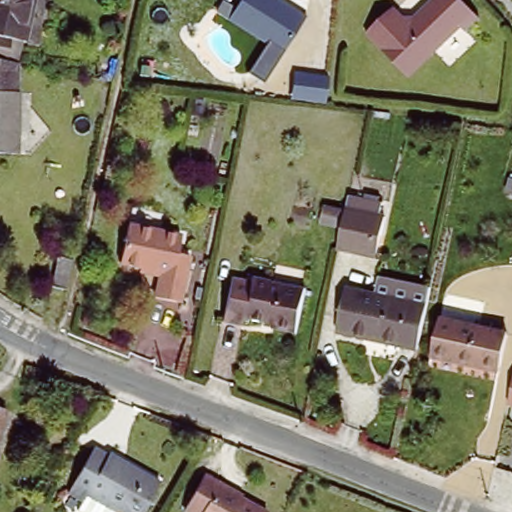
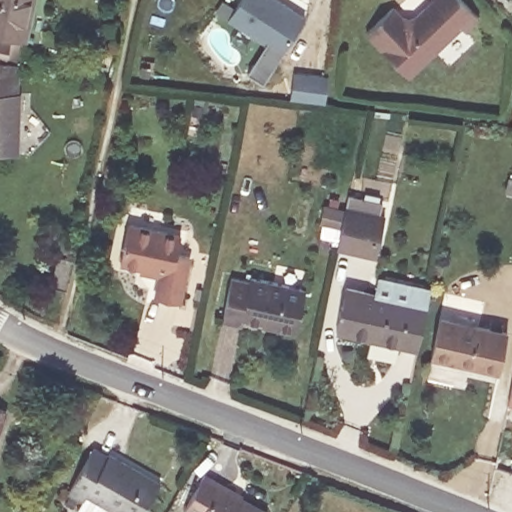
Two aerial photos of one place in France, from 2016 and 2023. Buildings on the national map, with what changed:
unchanged [(27,0),(20,36),(11,34),(5,60),(0,59),(0,0),(27,0)]
unchanged [(263,77),(249,69),(265,41),(229,12),(237,0),(289,0),(307,12),(263,77)]
unchanged [(430,9),(439,0),(465,0),(480,16),(466,29),(462,25),(409,76),(368,32),(395,7),(405,17),(414,17),(427,5),(430,9)]
unchanged [(9,65),(9,92),(12,92),(10,154),(0,153),(0,64),(9,65)]
unchanged [(512,204),(500,202),(503,185),(512,186),(512,204)]
unchanged [(364,254),(336,247),(345,206),(387,215),(382,236),(379,257),(364,254)]
unchanged [(181,235),(177,256),(192,258),(182,304),(150,297),(155,275),(115,267),(124,224),(181,235)]
unchanged [(70,265),(65,295),(42,291),(48,261),(70,265)]
unchanged [(431,287),(419,350),(336,333),(345,286),(375,292),(379,277),(431,287)]
unchanged [(309,290),(299,337),(273,332),(274,328),(247,323),(245,331),(221,327),(230,278),(250,283),(252,278),(309,290)]
unchanged [(505,326),(496,377),(485,372),(485,374),(485,377),(433,362),(444,312),(495,326),(496,322),(505,326)]
unchanged [(4,417),(0,428),(0,415),(4,417)]
unchanged [(163,485),(147,512),(118,512),(85,512),(80,509),(84,503),(67,493),(93,449),(110,459),(112,455),(163,485)]
unchanged [(259,512),(201,512),(193,507),(211,477),(227,486),(224,492),(259,512)]

